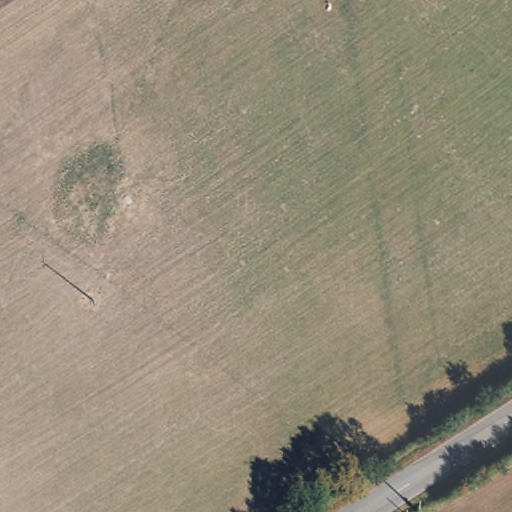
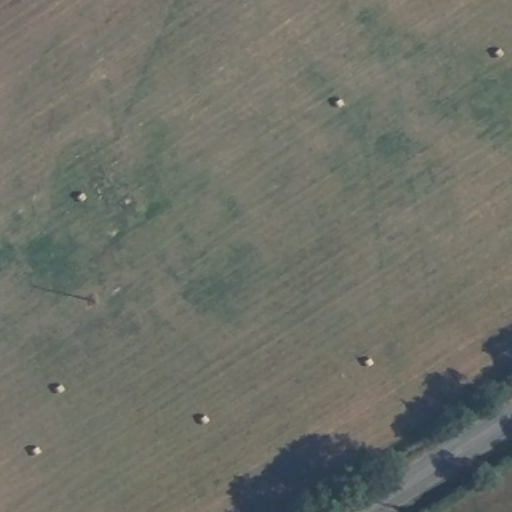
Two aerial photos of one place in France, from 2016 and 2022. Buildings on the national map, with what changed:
[]

